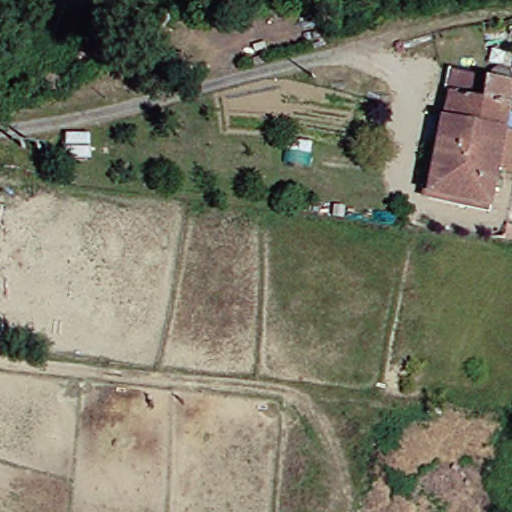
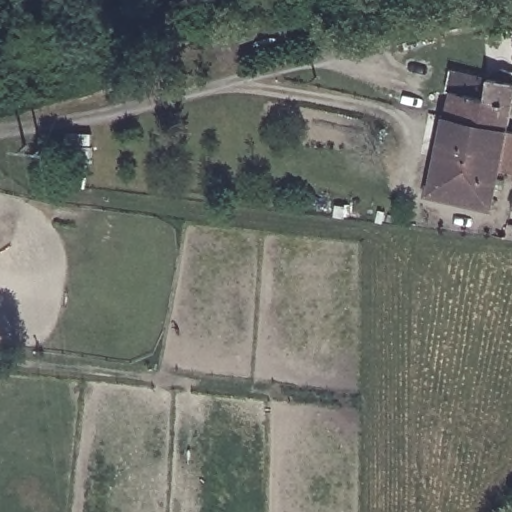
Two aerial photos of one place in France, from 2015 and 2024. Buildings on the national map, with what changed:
unchanged [(512,81),(512,129),(455,118),(460,95),(452,94),(457,71),(512,81)]
unchanged [(501,202),(442,191),(455,118),(512,129),(512,140),(501,202)]

